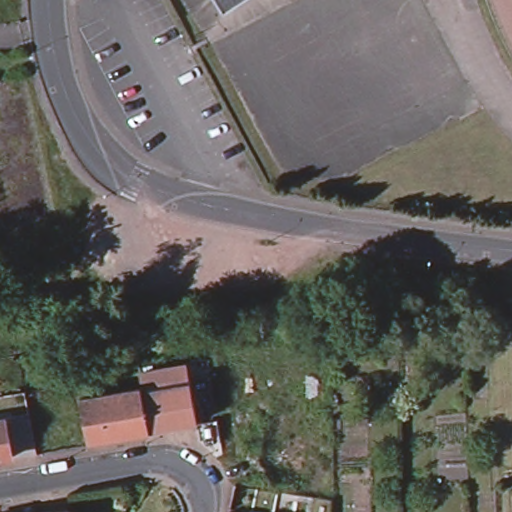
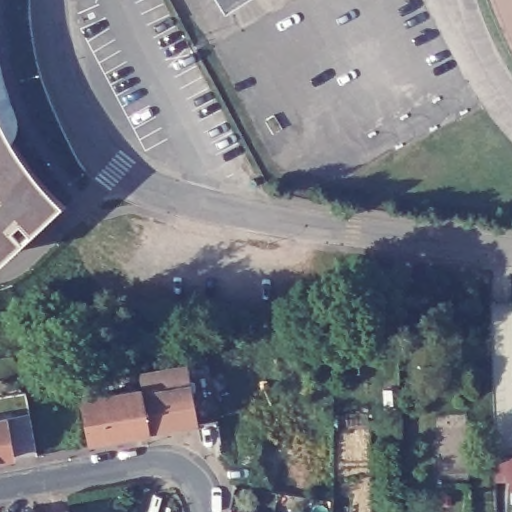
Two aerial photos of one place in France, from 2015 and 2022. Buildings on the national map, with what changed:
unchanged [(227,7),(223,0),(237,0),(227,7)]
new [(4,139),(21,163),(43,189),(58,213),(32,221),(0,250),(0,129),(4,139)]
unchanged [(92,401),(135,393),(134,384),(133,378),(180,370),(183,388),(191,428),(167,433),(143,437),(101,445),(92,401)]
unchanged [(4,417),(11,456),(0,458),(0,417),(4,417)]
unchanged [(67,507),(73,511),(73,512),(36,512),(55,509),(67,507)]

